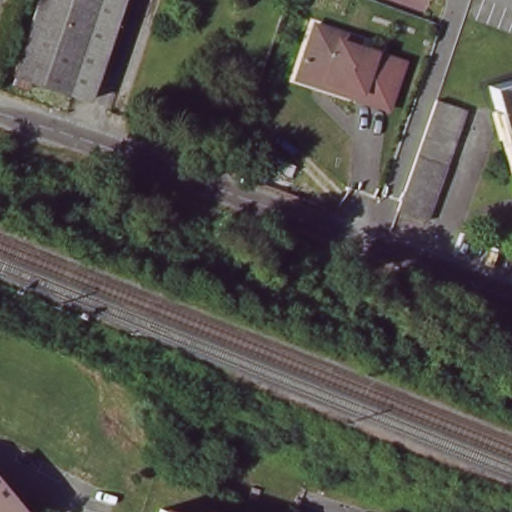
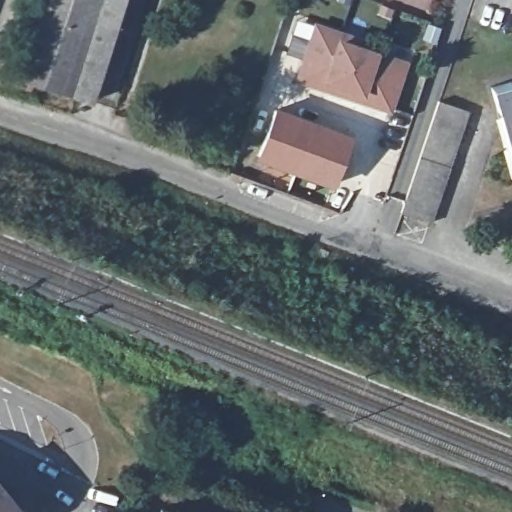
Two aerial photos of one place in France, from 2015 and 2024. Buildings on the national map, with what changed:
unchanged [(14,74),(36,0),(118,0),(88,98),(14,74)]
unchanged [(317,25),(344,34),(360,39),(359,47),(405,63),(390,109),(360,99),(299,79),(302,69),(317,25)]
unchanged [(511,144),(509,145),(507,139),(510,139),(500,109),(497,109),(495,104),(490,86),(512,80),(512,148),(511,144)]
unchanged [(430,222),(402,213),(438,101),(467,111),(430,222)]
new [(355,140),(337,192),(257,163),(277,111),(355,140)]
unchanged [(13,506),(5,512),(0,512),(0,490),(11,503),(13,506)]
unchanged [(170,512),(165,512),(166,511),(170,512)]

